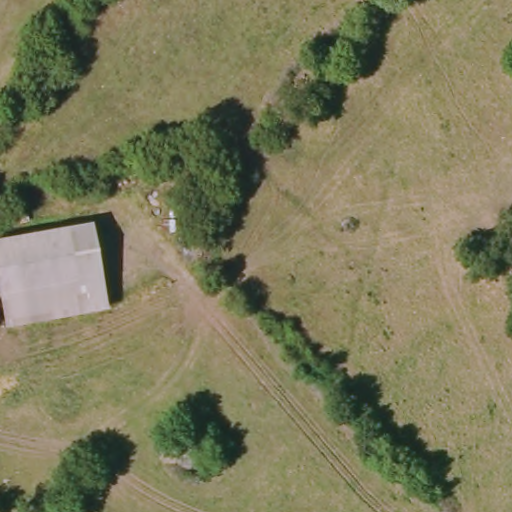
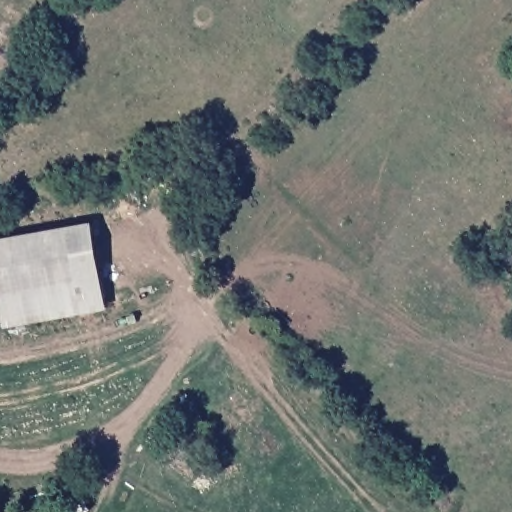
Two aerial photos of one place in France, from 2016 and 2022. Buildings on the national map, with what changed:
unchanged [(0,304),(0,240),(92,223),(108,309),(4,327),(0,304)]

